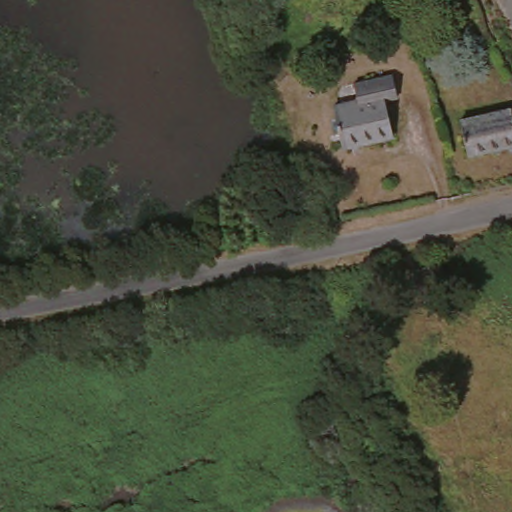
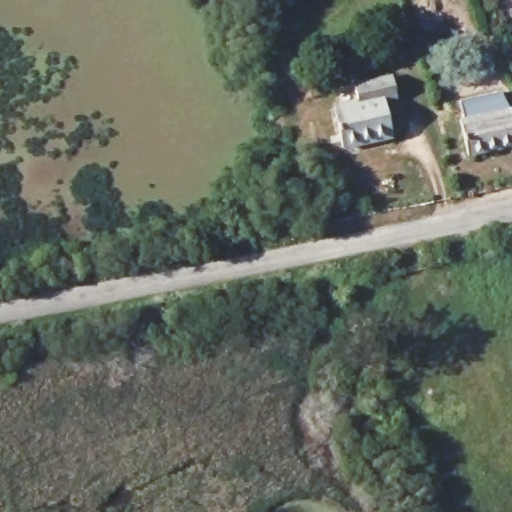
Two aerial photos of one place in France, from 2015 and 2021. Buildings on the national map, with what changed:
unchanged [(377,112),(384,148),(334,159),(326,119),(352,113),(349,95),(384,86),(388,109),(377,112)]
unchanged [(512,125),(512,155),(485,161),(470,164),(458,125),(509,114),(512,125)]

